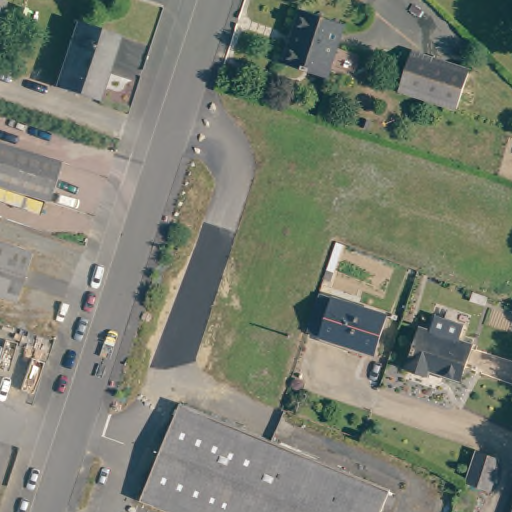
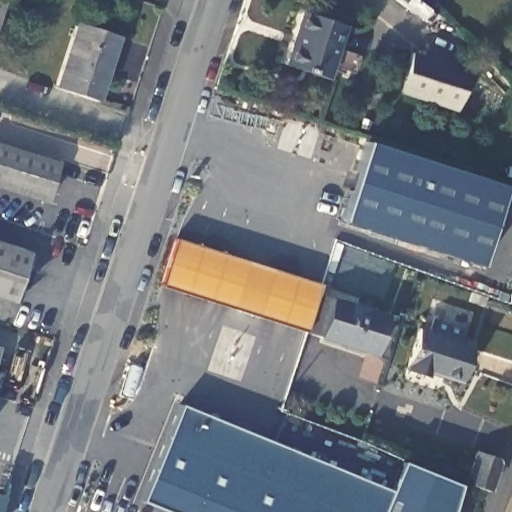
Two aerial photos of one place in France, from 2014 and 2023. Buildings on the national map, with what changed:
unchanged [(0,4),(0,0),(1,0),(0,4)]
unchanged [(330,76),(288,64),(304,11),(346,23),(339,46),(330,76)]
unchanged [(76,28),(79,20),(119,32),(116,40),(101,88),(98,97),(58,84),(61,76),(76,28)]
unchanged [(466,72),(454,111),(397,93),(409,55),(466,72)]
unchanged [(58,159),(46,199),(0,185),(0,142),(58,159)]
new [(369,143),(503,186),(478,265),(343,220),(369,143)]
demolished [(184,285),(203,228),(231,237),(212,291),(184,285)]
unchanged [(32,244),(18,292),(0,287),(0,235),(32,244)]
new [(318,285),(304,331),(162,285),(179,239),(318,285)]
unchanged [(391,315),(380,353),(313,334),(325,297),(391,315)]
unchanged [(463,377),(430,368),(428,374),(407,368),(419,326),(430,329),(434,315),(461,323),(457,337),(473,341),(463,377)]
demolished [(2,342),(0,348),(0,341),(2,342)]
unchanged [(184,406),(394,489),(385,512),(169,512),(144,502),(184,406)]
unchanged [(475,452),(497,458),(488,490),(485,490),(466,483),(475,452)]
new [(391,488),(402,462),(457,484),(450,512),(385,512),(394,489),(391,488)]
new [(1,496),(0,500),(0,495),(1,496)]

